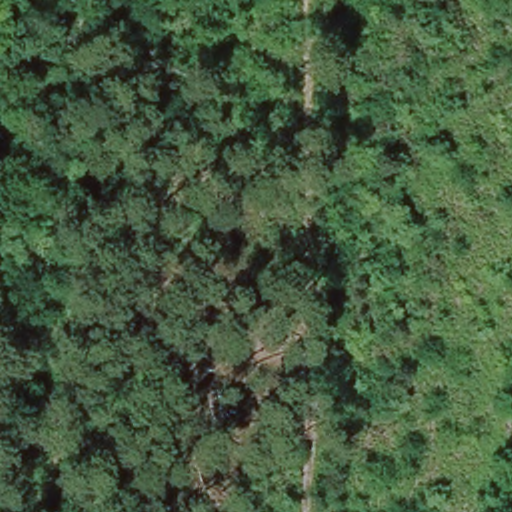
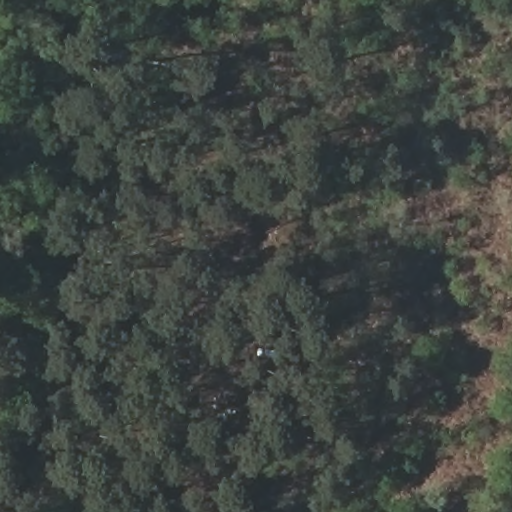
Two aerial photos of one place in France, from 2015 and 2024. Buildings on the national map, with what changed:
[]

